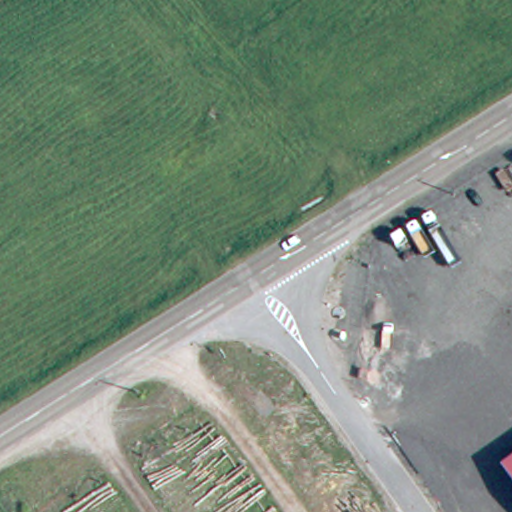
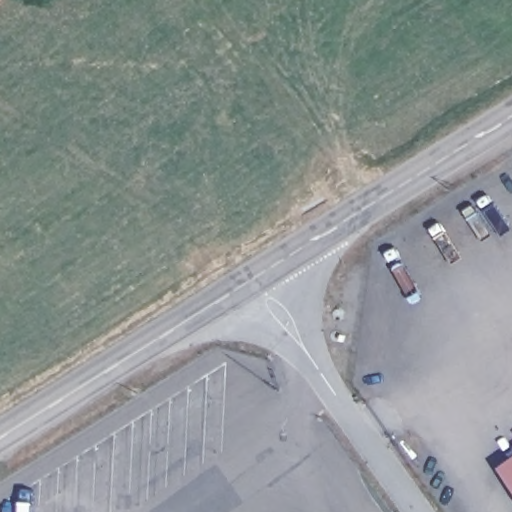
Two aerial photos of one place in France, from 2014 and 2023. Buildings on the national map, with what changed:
unchanged [(502,466),(512,459),(512,479),(502,466)]

